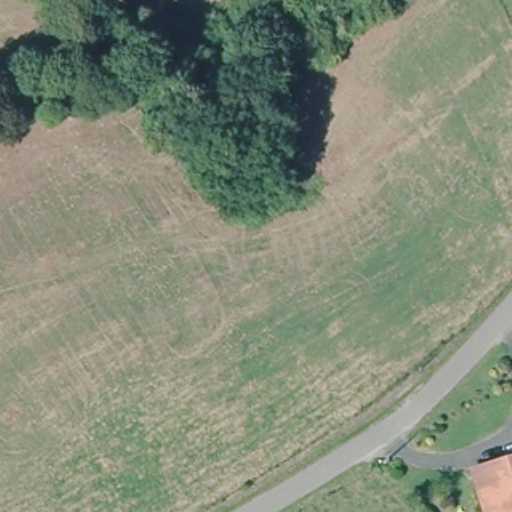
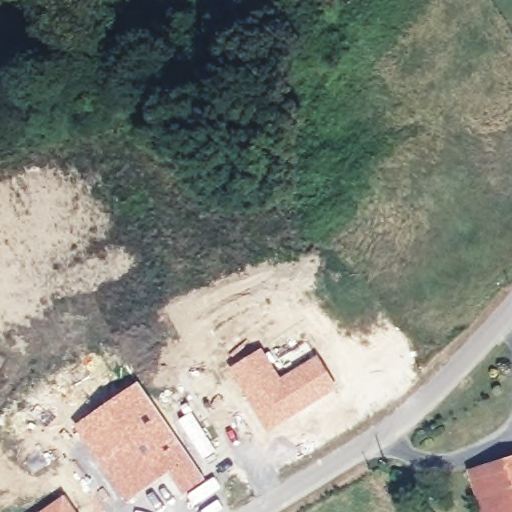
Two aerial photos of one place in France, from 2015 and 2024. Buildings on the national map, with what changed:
new [(262,346),(281,376),(317,355),(337,389),(267,432),(228,368),(262,346)]
new [(137,380),(206,480),(184,494),(168,473),(124,502),(74,425),(137,380)]
unchanged [(483,463),(512,455),(512,512),(496,512),(483,463)]
new [(64,495),(76,512),(39,512),(64,495)]

